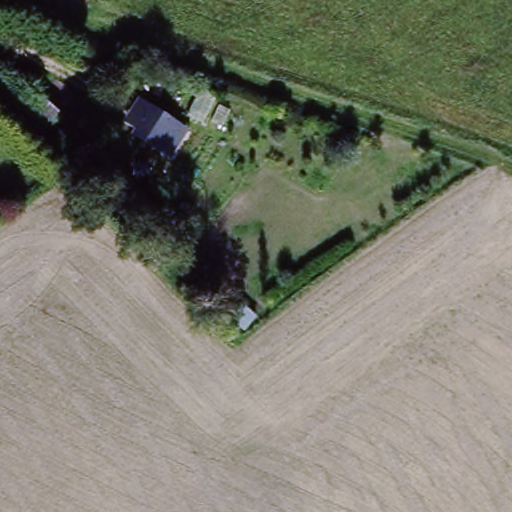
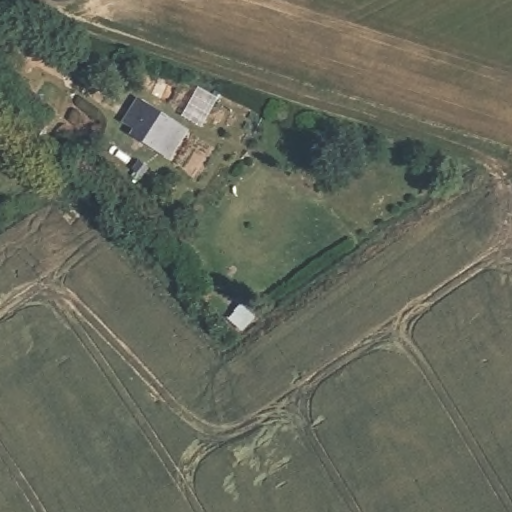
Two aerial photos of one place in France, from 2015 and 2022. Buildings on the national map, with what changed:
unchanged [(32,94),(56,110),(37,138),(0,108),(0,76),(26,99),(32,94)]
unchanged [(106,91),(100,106),(80,93),(88,79),(106,91)]
unchanged [(163,168),(120,146),(132,123),(125,118),(137,99),(188,129),(163,168)]

